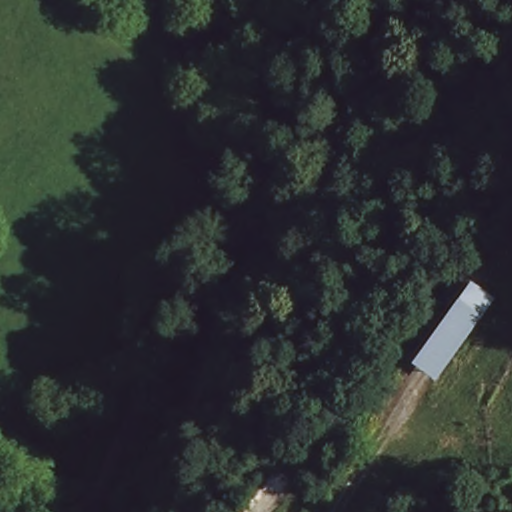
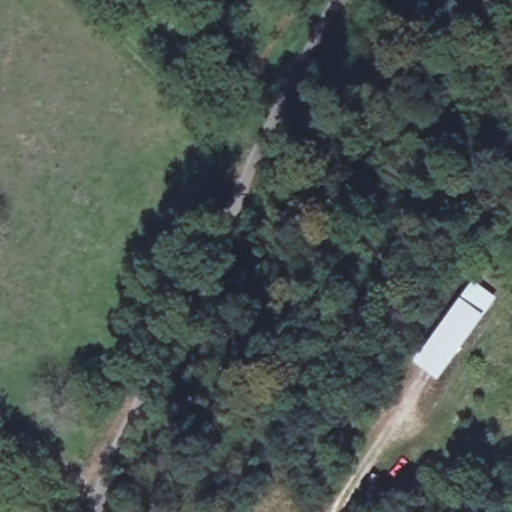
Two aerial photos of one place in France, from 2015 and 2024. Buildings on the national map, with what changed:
unchanged [(496,301),(437,383),(412,365),(469,282),(496,301)]

